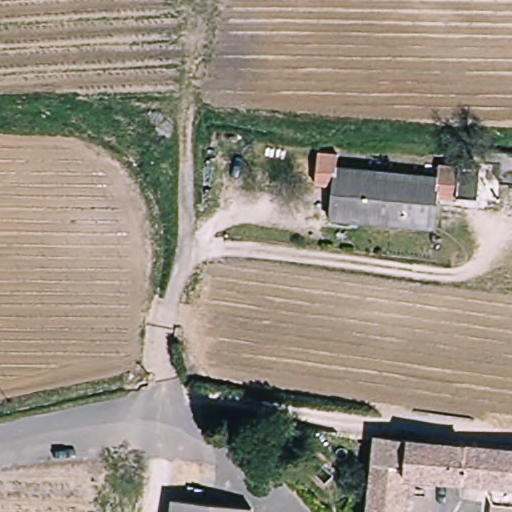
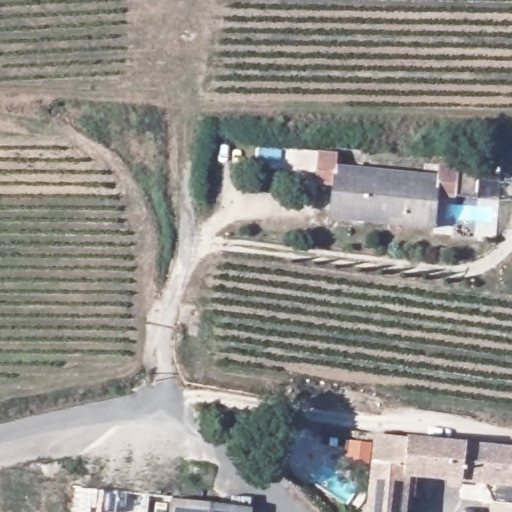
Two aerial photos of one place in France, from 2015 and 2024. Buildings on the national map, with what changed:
unchanged [(447,197),(442,230),(394,226),(341,221),(343,190),(323,187),(326,154),(345,157),(343,167),(398,171),(446,174),(446,162),(467,165),(461,198),(447,197)]
unchanged [(501,478),(465,475),(425,470),(423,493),(412,492),(409,512),(374,512),(379,471),(383,433),(419,436),(444,437),(512,442),(512,512),(498,512),(500,498),(501,478)]
unchanged [(253,512),(172,512),(174,496),(253,505),(253,512)]

